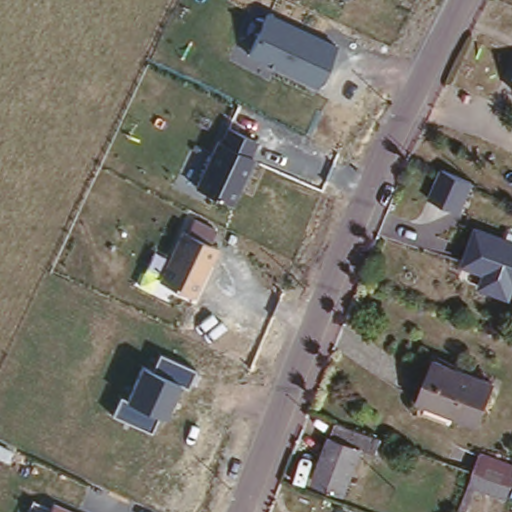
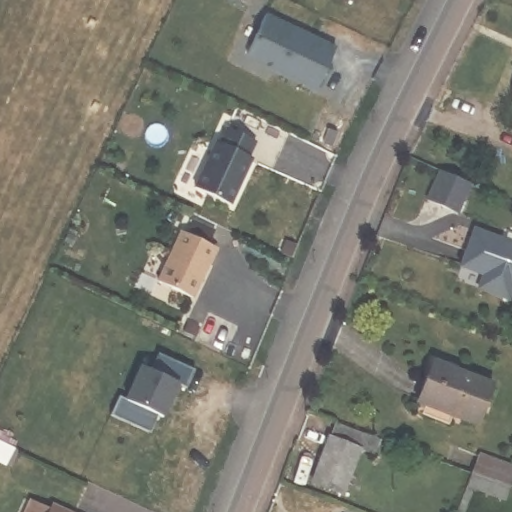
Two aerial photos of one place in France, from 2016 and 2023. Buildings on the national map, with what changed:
unchanged [(339,42),(318,89),(247,54),(268,10),(339,42)]
unchanged [(259,138),(251,154),(256,157),(233,205),(195,187),(218,138),(221,140),(229,123),(259,138)]
unchanged [(474,182),(476,182),(461,214),(426,199),(440,168),(474,182)]
unchanged [(209,241),(218,246),(195,296),(157,280),(159,274),(146,269),(154,250),(167,257),(182,229),(185,230),(192,217),(217,228),(209,241)]
unchanged [(512,239),(512,296),(487,288),(492,271),(466,261),(477,227),(512,239)]
unchanged [(196,366),(186,387),(180,384),(168,415),(161,412),(152,433),(111,414),(120,394),(127,398),(141,365),(152,370),(160,352),(196,366)]
unchanged [(492,377),(478,417),(455,408),(451,418),(416,404),(434,355),(492,377)]
unchanged [(329,434),(335,420),(385,436),(379,451),(371,448),(364,467),(352,463),(338,506),(304,495),(325,433),(342,438),(329,434)]
unchanged [(466,488),(477,454),(512,466),(512,486),(506,502),(466,488)]
unchanged [(76,512),(49,512),(53,502),(76,512)]

